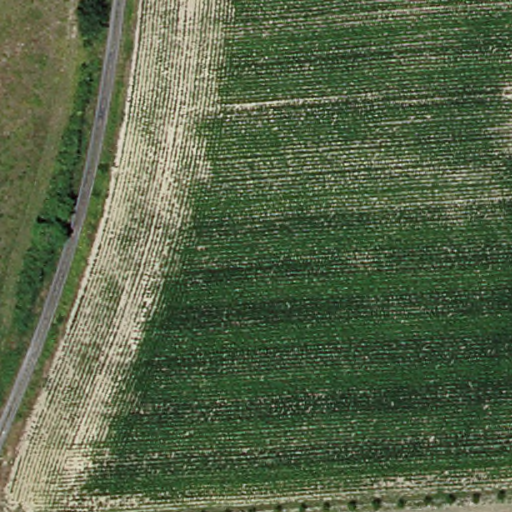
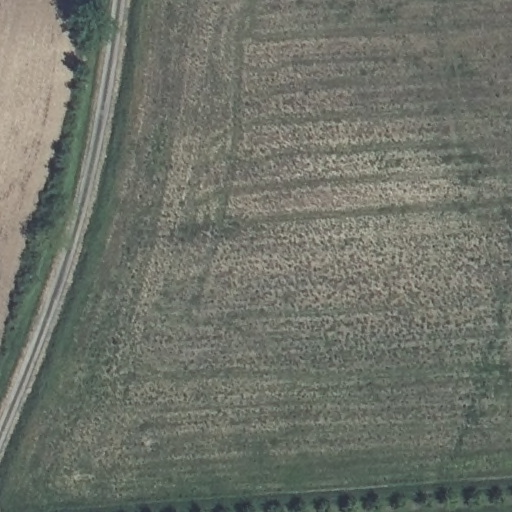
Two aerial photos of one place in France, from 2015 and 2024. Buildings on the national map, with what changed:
[]

